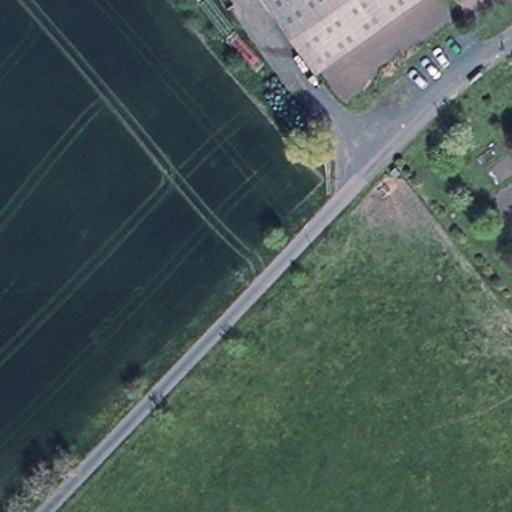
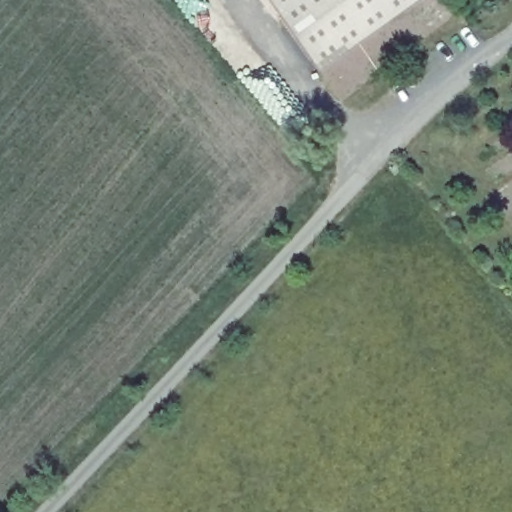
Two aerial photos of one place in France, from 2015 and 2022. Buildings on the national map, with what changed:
unchanged [(270,0),(410,0),(317,66),(270,0)]

